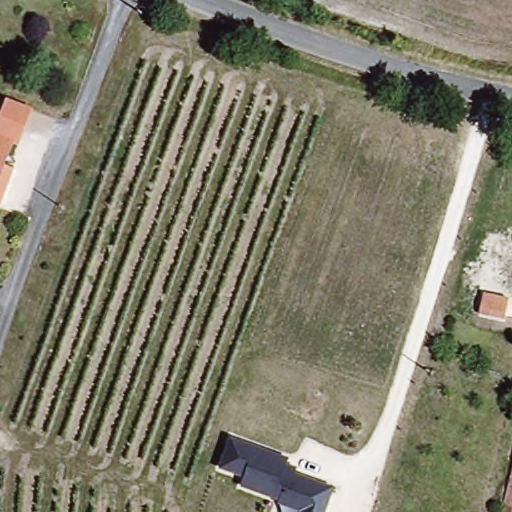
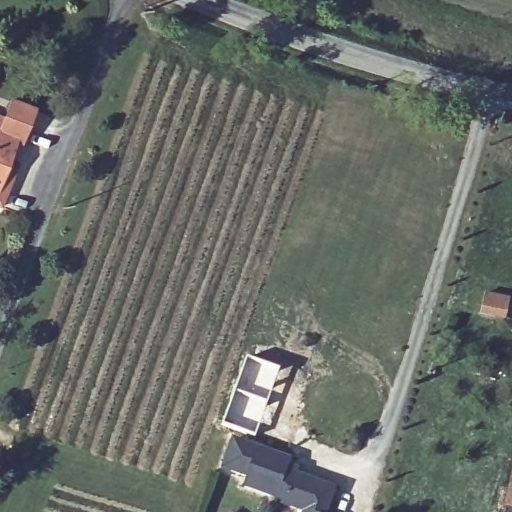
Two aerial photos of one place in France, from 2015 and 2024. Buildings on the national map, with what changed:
unchanged [(1,114),(0,116),(0,114),(1,114)]
unchanged [(14,135),(5,162),(0,175),(0,131),(14,135)]
new [(246,355),(282,367),(256,436),(222,424),(246,355)]
unchanged [(291,456),(287,469),(336,486),(329,512),(300,512),(300,510),(242,490),(245,477),(222,471),(232,436),(291,456)]
unchanged [(512,464),(512,492),(504,489),(512,464)]
unchanged [(500,503),(512,506),(512,512),(497,512),(500,503)]

